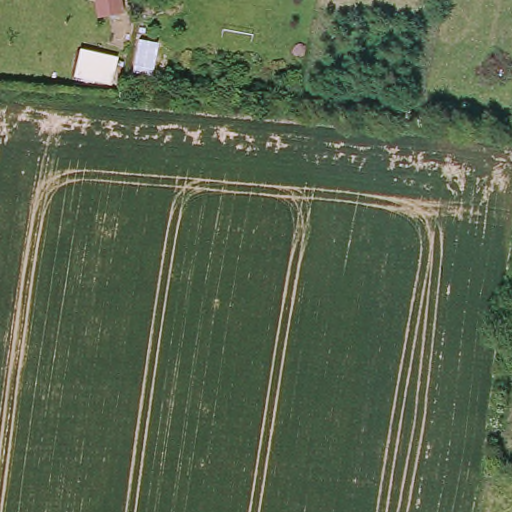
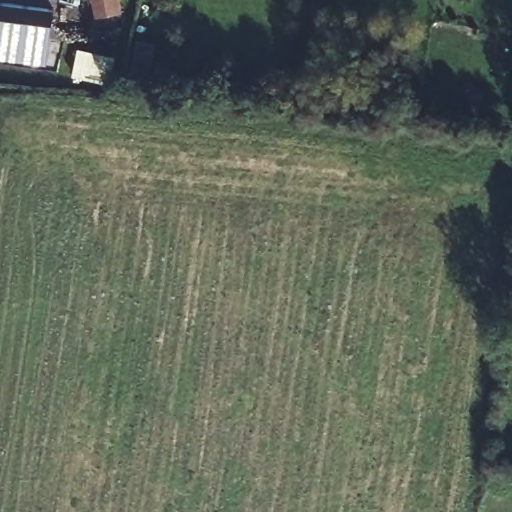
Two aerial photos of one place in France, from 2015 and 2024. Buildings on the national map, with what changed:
new [(0,56),(0,0),(12,0),(54,5),(45,61),(0,56)]

